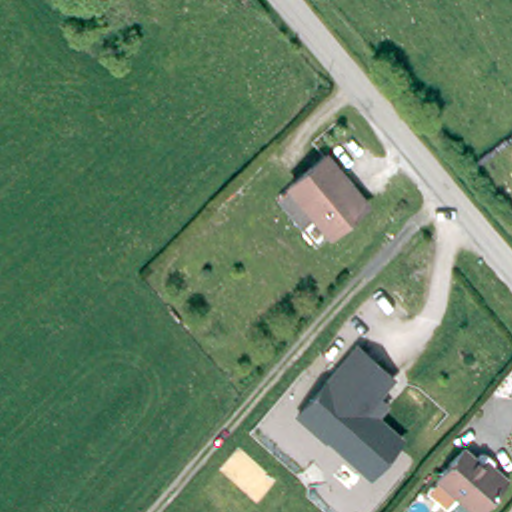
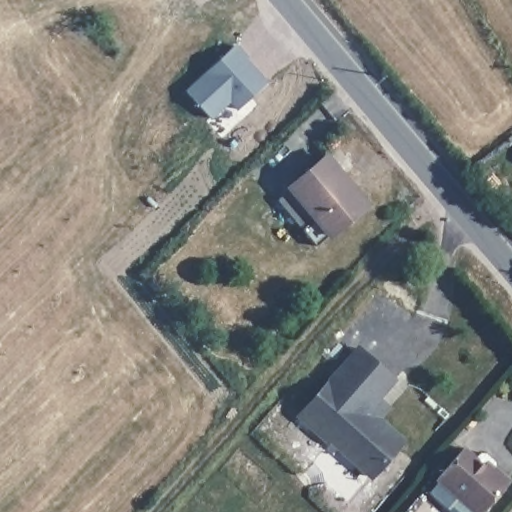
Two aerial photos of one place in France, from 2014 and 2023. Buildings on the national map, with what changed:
new [(234,44),(246,56),(241,60),(246,66),(252,66),(266,81),(237,107),(228,99),(209,116),(185,89),(234,44)]
unchanged [(357,210),(329,232),(289,185),(326,154),(348,180),(366,202),(357,210)]
unchanged [(394,376),(376,398),(380,401),(379,411),(376,415),(380,418),(403,438),(371,475),(350,455),(329,437),(327,439),(299,414),(358,345),(394,376)]
unchanged [(476,512),(464,512),(451,500),(461,489),(442,471),(467,442),(486,458),(490,453),(496,459),(511,472),(481,507),(476,512)]

